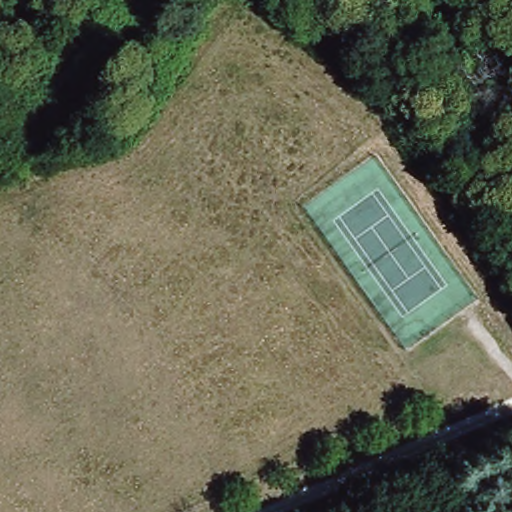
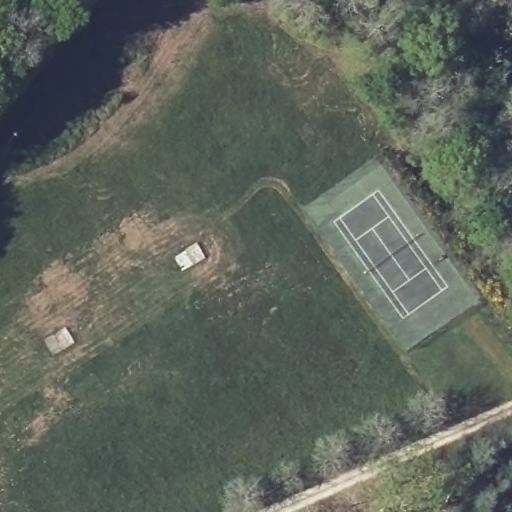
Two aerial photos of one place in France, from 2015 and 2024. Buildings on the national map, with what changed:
[]

